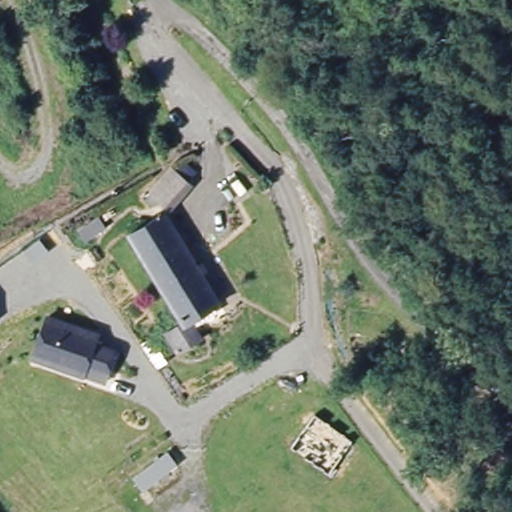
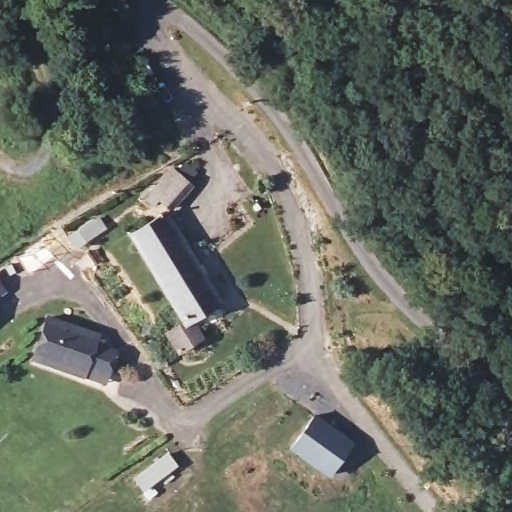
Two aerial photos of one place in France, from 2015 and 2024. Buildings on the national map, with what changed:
unchanged [(175,175),(183,167),(192,175),(185,184),(190,187),(170,212),(159,202),(151,195),(153,193),(172,172),(175,175)]
unchanged [(183,351),(172,334),(186,324),(130,237),(167,215),(225,302),(195,320),(206,338),(183,351)]
new [(38,242),(46,252),(33,262),(25,251),(38,242)]
unchanged [(81,377),(31,357),(46,317),(96,335),(92,345),(113,352),(106,372),(102,383),(81,377)]
new [(290,447),(313,415),(350,442),(328,476),(290,447)]

